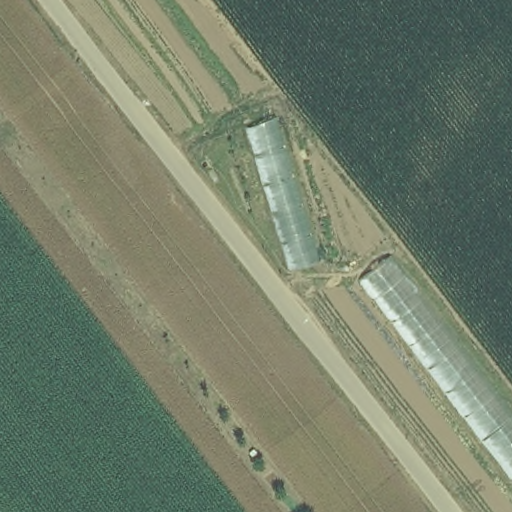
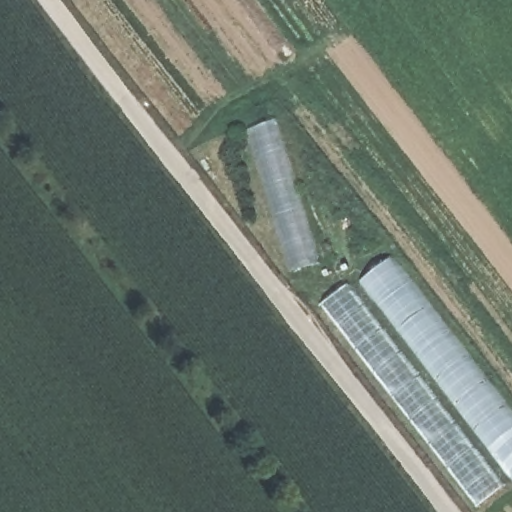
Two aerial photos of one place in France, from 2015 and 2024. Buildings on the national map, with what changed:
unchanged [(318,258),(288,265),(248,126),(276,119),(318,258)]
unchanged [(512,421),(512,472),(366,275),(390,257),(512,421)]
new [(507,488),(479,509),(323,307),(350,284),(507,488)]

